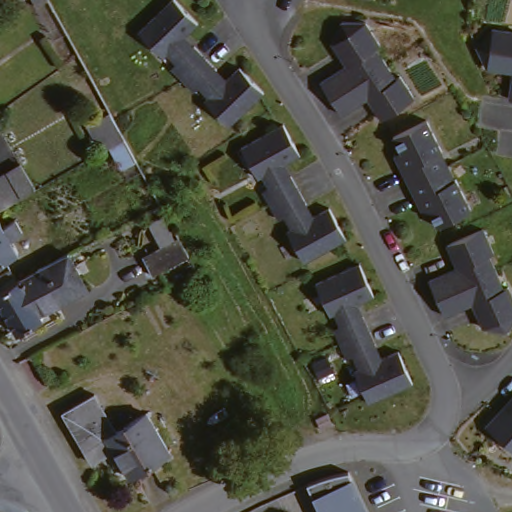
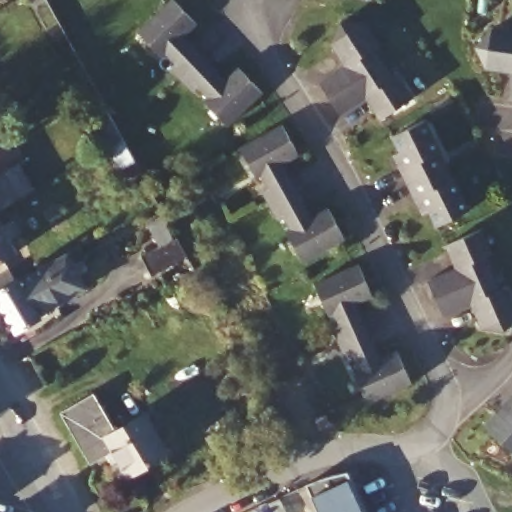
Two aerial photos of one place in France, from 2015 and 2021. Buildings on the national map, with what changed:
unchanged [(183,34),(207,58),(223,75),(237,64),(262,91),(254,98),(227,120),(204,95),(207,94),(197,83),(194,85),(183,74),(174,64),(178,62),(165,48),(162,51),(136,24),(160,0),(179,0),(197,19),(183,34)]
unchanged [(373,91),(346,106),(338,93),(330,78),(354,63),(341,41),(350,19),(372,23),(384,44),(377,48),(387,62),(396,78),(402,74),(415,96),(385,111),(373,91)]
unchanged [(480,41),(488,34),(499,22),(512,25),(512,70),(492,65),(480,41)]
unchanged [(126,173),(114,151),(108,155),(94,129),(114,116),(129,143),(140,164),(126,173)]
unchanged [(436,219),(429,206),(423,209),(408,177),(397,155),(404,151),(396,135),(426,122),(444,159),(466,206),(436,219)]
unchanged [(281,124),(298,155),(285,164),(298,187),(314,216),(327,210),(344,243),(336,248),(304,263),(287,229),(292,227),(284,213),(278,216),(270,202),(263,190),(271,187),(264,174),(260,175),(244,143),(274,128),(281,124)]
unchanged [(24,159),(38,184),(25,192),(12,199),(6,203),(0,207),(0,174),(11,167),(24,159)]
unchanged [(142,255),(162,244),(149,219),(160,213),(174,238),(177,236),(183,248),(188,256),(153,275),(142,255)]
unchanged [(2,223),(13,216),(20,228),(9,235),(16,248),(0,258),(0,219),(2,223)]
unchanged [(450,308),(443,290),(438,276),(464,263),(455,242),(488,228),(496,249),(491,252),(497,267),(505,287),(510,284),(512,288),(512,317),(507,327),(487,319),(477,297),(450,308)]
unchanged [(90,284),(75,293),(44,309),(47,314),(21,329),(0,292),(0,275),(15,267),(22,278),(71,250),(90,284)]
unchanged [(362,268),(375,296),(367,302),(361,304),(375,334),(379,344),(386,360),(400,352),(414,383),(386,398),(371,406),(367,397),(355,372),(360,369),(355,359),(351,361),(340,337),(341,329),(333,310),(328,310),(318,288),(354,271),(362,268)]
unchanged [(91,389),(113,425),(145,407),(169,448),(128,471),(112,446),(89,458),(59,409),(91,389)]
unchanged [(504,409),(507,412),(512,405),(512,442),(490,423),(504,409)]
unchanged [(305,486),(348,469),(367,512),(316,512),(305,486)]

